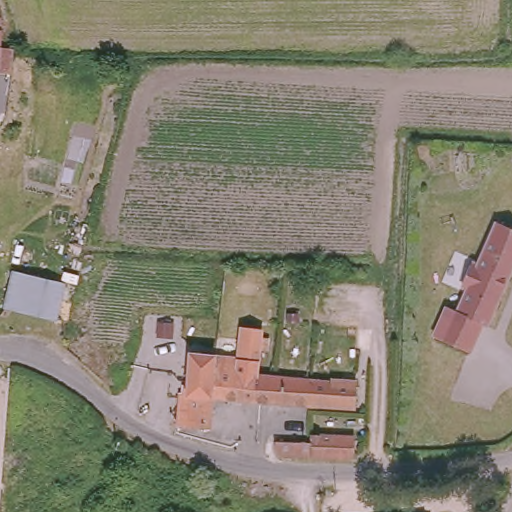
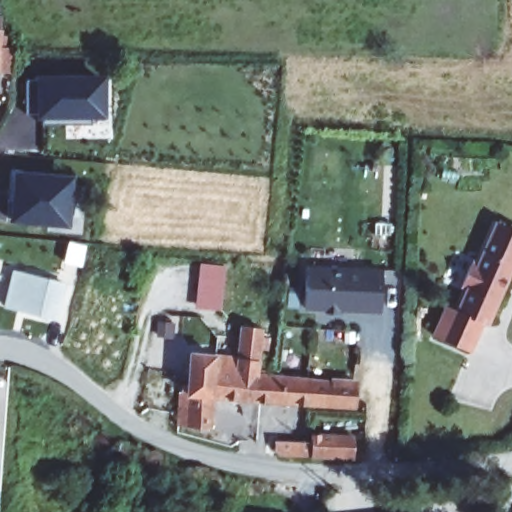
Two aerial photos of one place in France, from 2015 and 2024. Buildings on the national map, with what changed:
unchanged [(2,16),(1,31),(0,42),(0,15),(2,16)]
unchanged [(10,74),(0,72),(0,47),(13,49),(10,74)]
new [(105,119),(93,118),(92,123),(42,123),(43,118),(35,119),(35,112),(27,113),(27,79),(36,79),(35,75),(106,74),(105,119)]
new [(69,226),(9,221),(15,170),(73,175),(69,226)]
unchanged [(455,303),(460,306),(472,282),(465,279),(467,273),(472,261),(473,257),(480,260),(500,216),(512,221),(512,263),(505,279),(488,319),(483,317),(472,345),(442,333),(437,331),(450,301),(455,303)]
new [(196,306),(200,263),(224,267),(220,311),(196,306)]
unchanged [(65,280),(62,289),(55,316),(7,303),(15,274),(17,267),(65,280)]
new [(379,313),(306,309),(307,268),(380,271),(379,313)]
unchanged [(212,428),(178,427),(178,395),(187,395),(187,354),(187,345),(192,345),(242,346),(243,326),(262,327),(257,370),(257,375),(262,375),(260,401),(212,395),(212,428)]
unchanged [(332,382),(333,379),(358,381),(357,406),(260,401),(262,375),(272,376),(332,382)]
unchanged [(355,452),(267,447),(268,434),(312,437),(313,429),(356,431),(355,452)]
unchanged [(220,498),(213,495),(195,489),(200,476),(214,481),(225,485),(220,498)]

